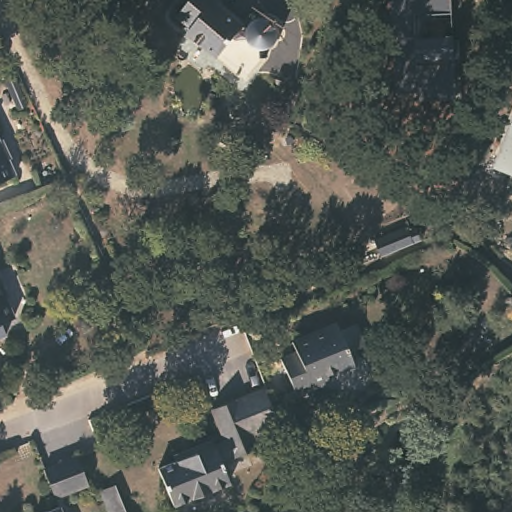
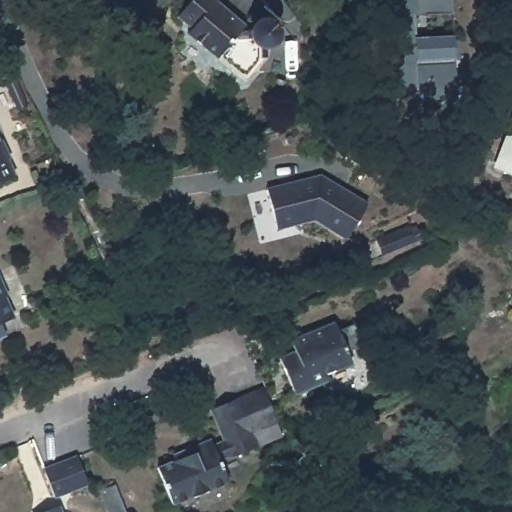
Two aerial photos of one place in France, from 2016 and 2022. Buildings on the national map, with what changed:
unchanged [(257,32),(257,30),(259,28),(260,27),(261,25),(263,24),(265,23),(267,23),(269,22),(271,22),(273,22),(275,23),(277,23),(279,24),(280,25),(282,26),(283,28),(284,29),(285,31),(286,33),(287,35),(287,37),(287,39),(287,41),(286,43),(286,45),(285,46),(284,48),(282,49),(281,51),(279,52),(277,53),(275,53),(273,54),(271,54),(269,54),(267,54),(270,62),(250,86),(192,37),(197,32),(182,20),(199,0),(220,0),(223,2),(218,8),(222,11),(226,10),(254,33),(256,34),(256,33),(257,32)]
unchanged [(455,36),(455,41),(460,40),(461,60),(456,60),(457,86),(418,87),(419,94),(397,95),(394,14),(393,0),(421,0),(422,13),(423,37),(455,36)]
unchanged [(454,13),(427,14),(426,0),(453,0),(454,13)]
unchanged [(29,104),(18,109),(5,80),(16,75),(29,104)]
unchanged [(512,99),(512,168),(490,159),(512,99)]
unchanged [(11,158),(9,160),(16,176),(0,184),(0,139),(3,138),(11,158)]
new [(318,172),(320,177),(332,184),(333,181),(366,200),(345,236),(314,218),(280,230),(266,191),(318,172)]
unchanged [(375,240),(408,228),(409,230),(416,227),(419,235),(421,241),(414,244),(382,257),(375,240)]
unchanged [(6,296),(15,317),(5,321),(9,332),(0,336),(0,270),(10,295),(6,296)]
unchanged [(296,398),(291,387),(281,362),(294,357),(291,347),(337,328),(339,334),(355,328),(364,349),(347,356),(352,367),(326,378),(329,384),(296,398)]
unchanged [(239,403),(264,393),(270,408),(278,427),(253,437),(239,403)]
unchanged [(259,451),(233,462),(231,458),(220,463),(230,486),(173,509),(158,473),(177,466),(175,459),(213,445),(215,449),(225,445),(213,414),(239,403),(253,437),(259,451)]
unchanged [(46,468),(51,466),(78,456),(90,483),(63,494),(56,497),(46,468)]
unchanged [(111,512),(102,489),(115,484),(127,512),(111,512)]
unchanged [(60,512),(30,512),(56,501),(60,512)]

